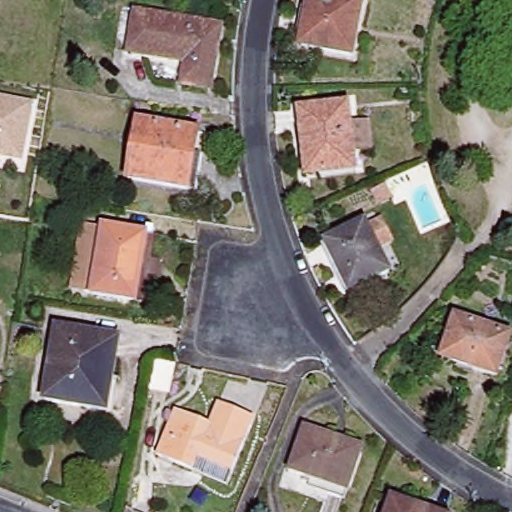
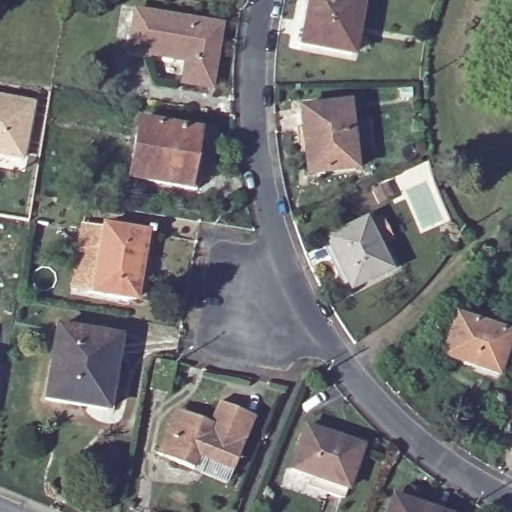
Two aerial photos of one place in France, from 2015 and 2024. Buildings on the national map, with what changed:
unchanged [(351,58),(300,50),(307,0),(331,0),(359,5),(351,58)]
unchanged [(209,86),(180,82),(184,60),(129,50),(135,14),(219,28),(209,86)]
unchanged [(19,159),(0,155),(0,97),(30,102),(19,159)]
unchanged [(307,180),(295,109),(344,102),(356,173),(307,180)]
unchanged [(193,191),(126,181),(134,124),(200,134),(193,191)]
unchanged [(388,272),(349,288),(334,255),(328,258),(319,241),(366,222),(388,272)]
unchanged [(126,300),(84,292),(94,226),(136,234),(126,300)]
unchanged [(498,375),(444,357),(456,317),(510,335),(498,375)]
unchanged [(105,412),(37,401),(49,327),(118,338),(105,412)]
unchanged [(170,390),(149,386),(154,358),(174,362),(170,390)]
unchanged [(250,419),(229,470),(196,456),(190,468),(155,453),(169,420),(174,408),(209,423),(217,405),(250,419)]
unchanged [(346,488),(288,469),(300,431),(359,450),(346,488)]
unchanged [(445,512),(387,512),(393,495),(445,512)]

